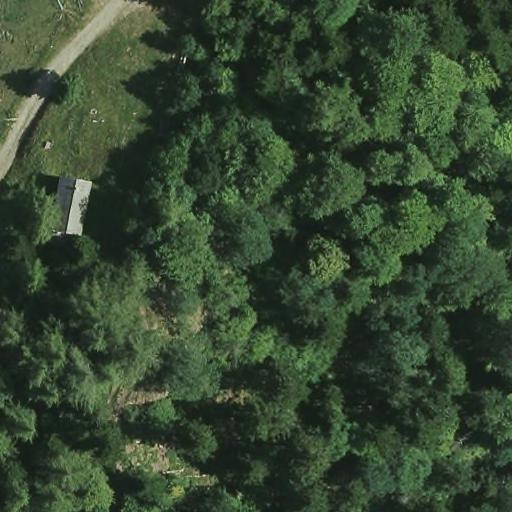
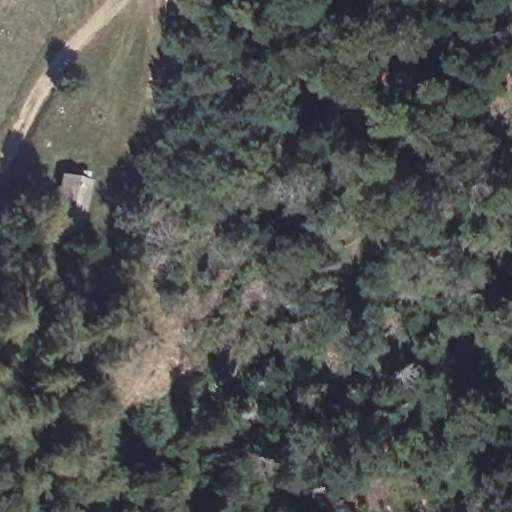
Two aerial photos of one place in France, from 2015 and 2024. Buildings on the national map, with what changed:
unchanged [(98,177),(89,245),(55,240),(64,172),(98,177)]

